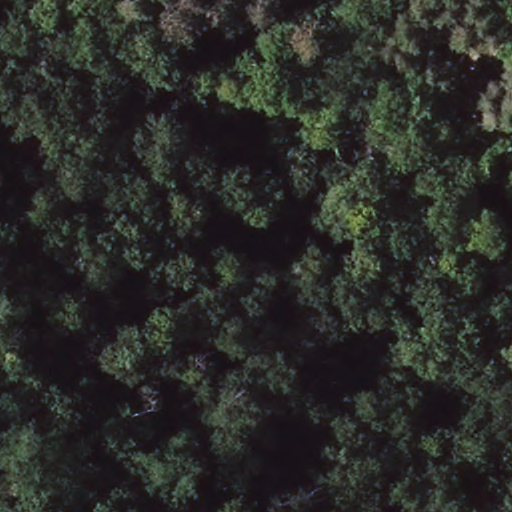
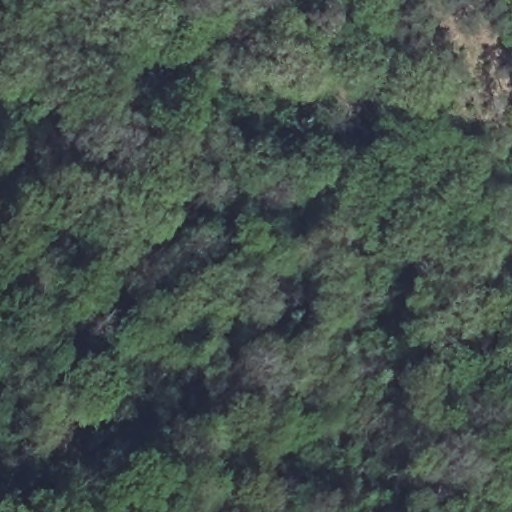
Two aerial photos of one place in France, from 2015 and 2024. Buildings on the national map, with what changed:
unchanged [(336,125),(347,131),(330,158),(318,150),(336,125)]

